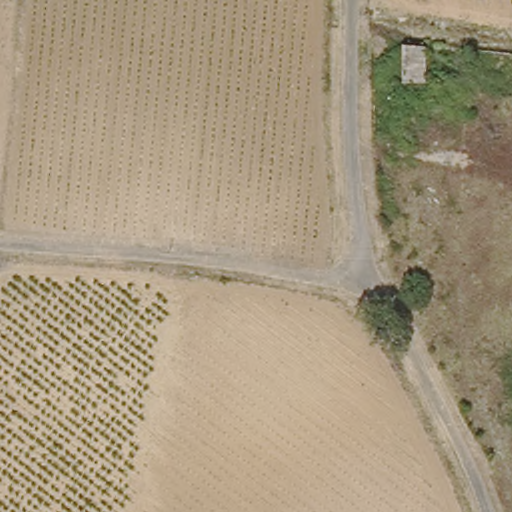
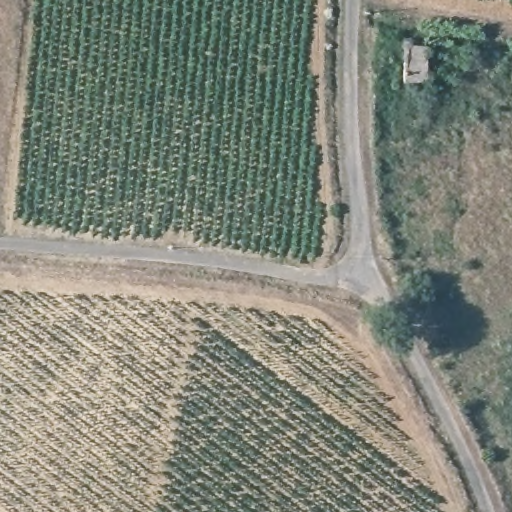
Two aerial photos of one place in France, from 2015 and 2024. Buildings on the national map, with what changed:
unchanged [(426,81),(403,81),(402,42),(426,43),(426,81)]

